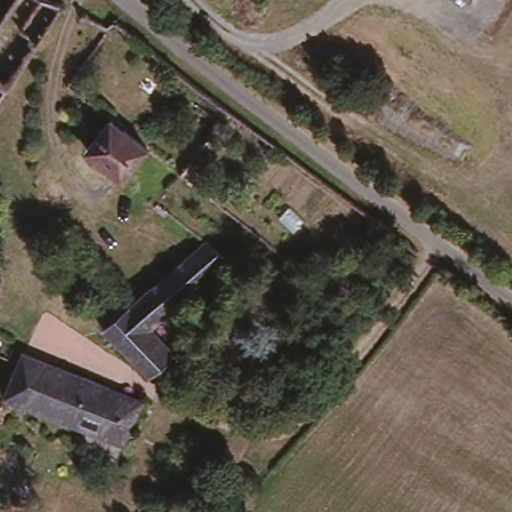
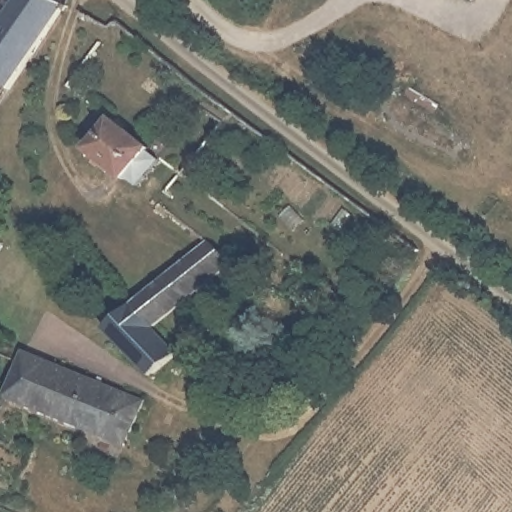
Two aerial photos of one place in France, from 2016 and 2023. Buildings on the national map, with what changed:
new [(62,6),(11,87),(0,79),(0,22),(14,0),(50,0),(62,6)]
unchanged [(126,169),(112,157),(102,166),(83,149),(111,119),(146,147),(126,169)]
unchanged [(201,239),(232,266),(160,321),(132,296),(201,239)]
unchanged [(96,326),(132,296),(160,321),(180,345),(141,370),(96,326)]
unchanged [(144,401),(132,429),(127,440),(5,396),(14,373),(19,361),(144,401)]

